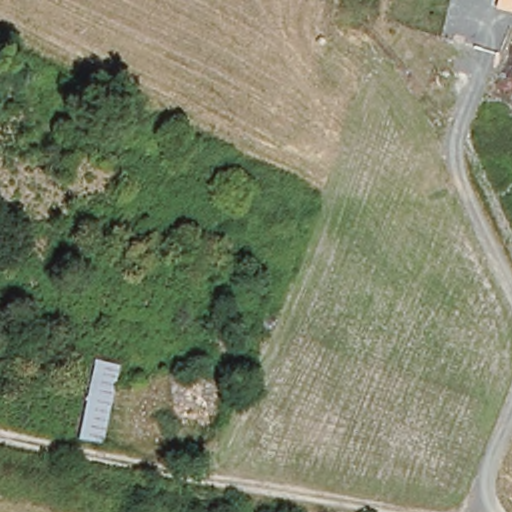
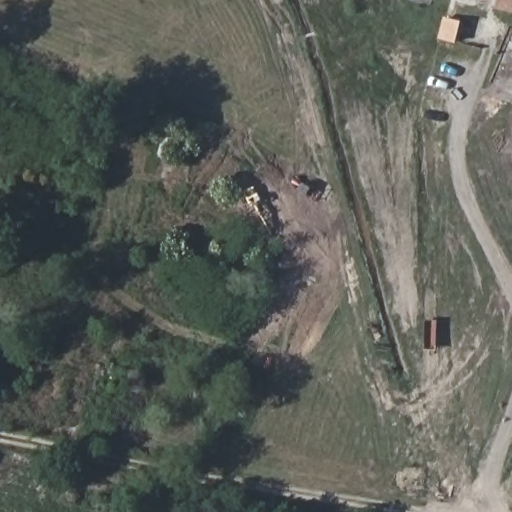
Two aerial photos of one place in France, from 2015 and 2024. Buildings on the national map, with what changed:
unchanged [(496,0),(512,0),(512,13),(495,9),(496,0)]
demolished [(103,442),(73,440),(93,358),(121,364),(103,442)]

